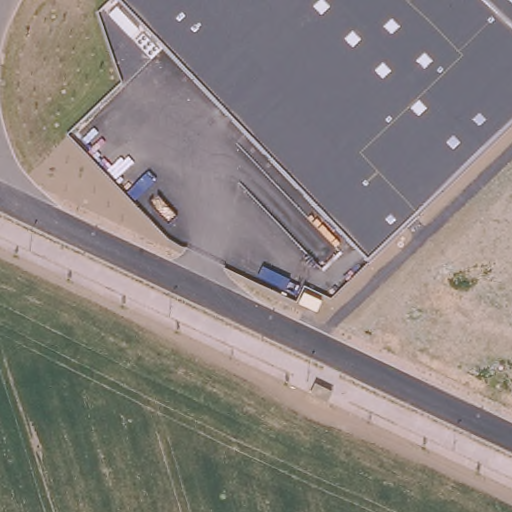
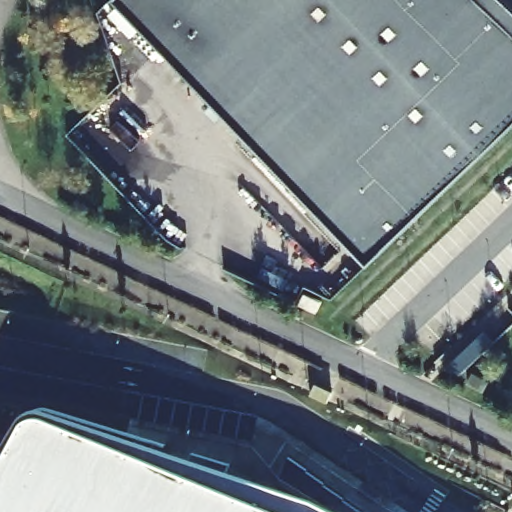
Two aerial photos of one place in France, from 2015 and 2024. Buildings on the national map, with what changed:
unchanged [(116,0),(508,0),(512,4),(512,125),(368,263),(116,0)]
new [(489,395),(468,386),(472,373),(493,383),(489,395)]
new [(20,422),(34,422),(62,435),(257,512),(0,512),(0,459),(20,422)]

